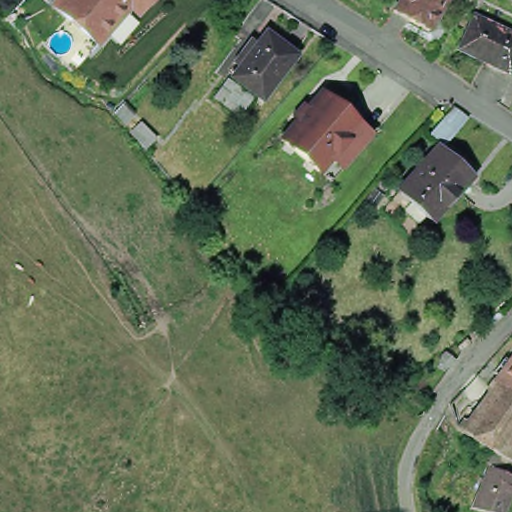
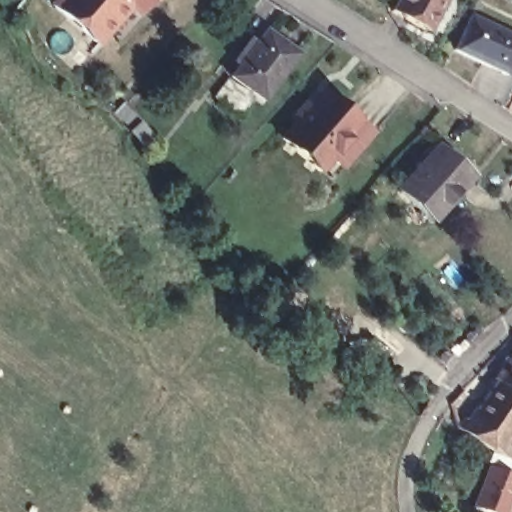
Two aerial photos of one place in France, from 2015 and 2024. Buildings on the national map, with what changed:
unchanged [(51,6),(57,0),(148,0),(135,15),(127,9),(95,45),(51,6)]
unchanged [(400,0),(447,0),(425,36),(391,15),(400,0)]
unchanged [(503,73),(455,50),(471,16),(512,36),(512,60),(505,74),(503,73)]
unchanged [(264,29),(295,52),(261,98),(230,75),(232,73),(226,68),(248,37),(255,42),(264,29)]
unchanged [(215,97),(228,79),(250,96),(236,113),(215,97)]
unchanged [(319,174),(281,142),(321,95),(359,126),(370,136),(331,184),(319,174)]
unchanged [(140,123),(155,138),(145,146),(131,129),(140,123)]
unchanged [(432,147),(463,176),(425,218),(393,190),(432,147)]
unchanged [(512,355),(512,392),(494,379),(512,355)]
unchanged [(493,452),(456,428),(494,379),(512,392),(512,460),(498,452),(497,454),(493,452)]
unchanged [(512,488),(503,512),(493,512),(474,506),(488,471),(490,466),(511,474),(512,475),(512,488)]

